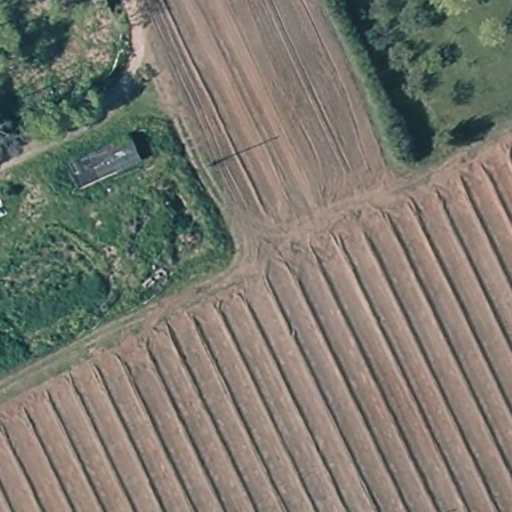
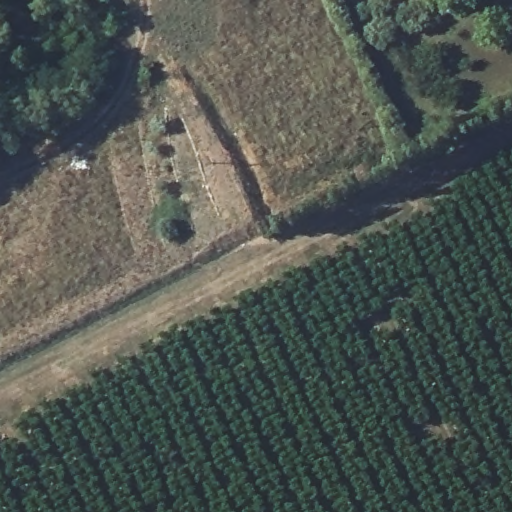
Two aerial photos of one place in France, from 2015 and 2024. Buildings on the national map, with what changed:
[]

